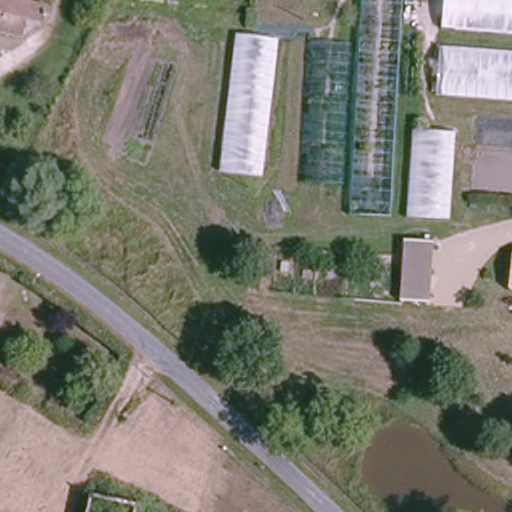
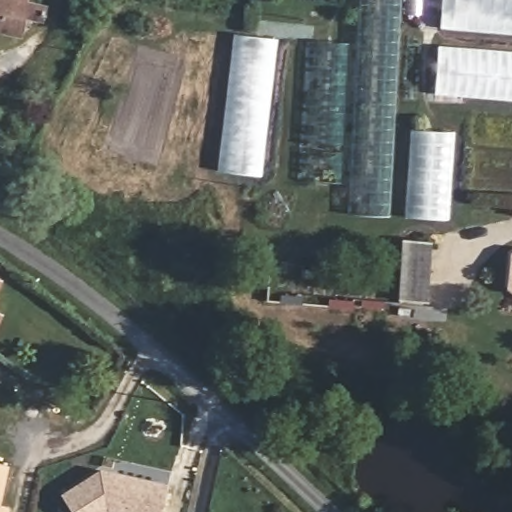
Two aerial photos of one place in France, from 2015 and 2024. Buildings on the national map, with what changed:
unchanged [(43,5),(40,22),(26,19),(21,37),(0,32),(0,0),(31,0),(31,2),(43,5)]
unchanged [(403,0),(390,215),(349,214),(363,0),(403,0)]
unchanged [(439,29),(441,0),(512,0),(512,34),(439,29)]
unchanged [(219,171),(235,32),(277,39),(261,176),(219,171)]
unchanged [(346,182),(305,180),(312,39),(355,43),(346,182)]
unchanged [(434,95),(437,45),(512,51),(512,101),(434,95)]
unchanged [(448,217),(406,215),(410,130),(452,132),(448,217)]
unchanged [(399,298),(399,288),(402,238),(431,240),(427,290),(426,301),(399,298)]
unchanged [(0,287),(0,272),(5,273),(0,287)]
new [(3,507),(13,509),(12,512),(0,512),(0,464),(11,467),(3,507)]
new [(105,471),(173,487),(167,512),(77,512),(66,494),(105,471)]

